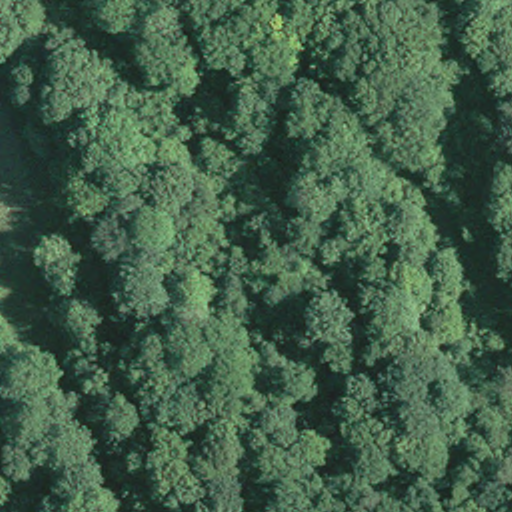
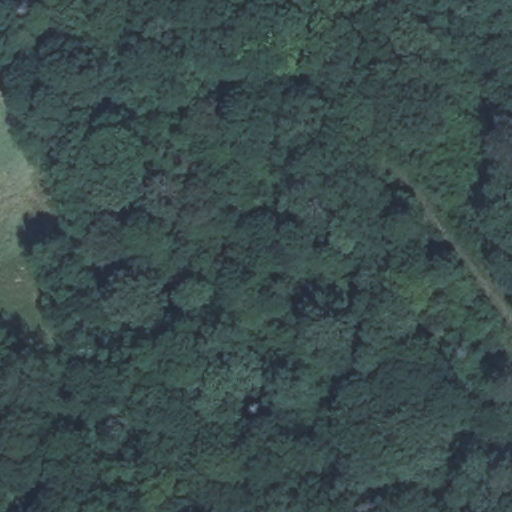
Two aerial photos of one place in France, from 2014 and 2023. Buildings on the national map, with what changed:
[]

